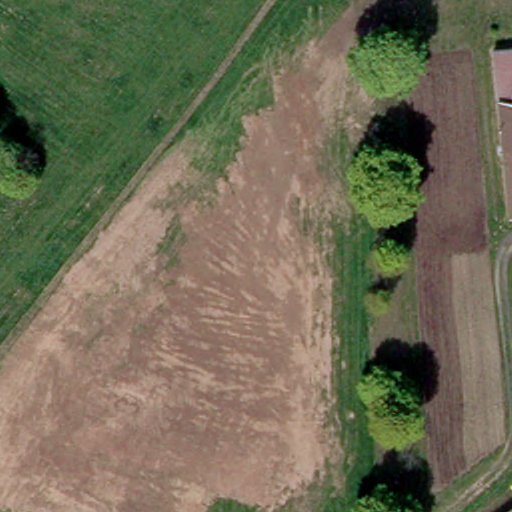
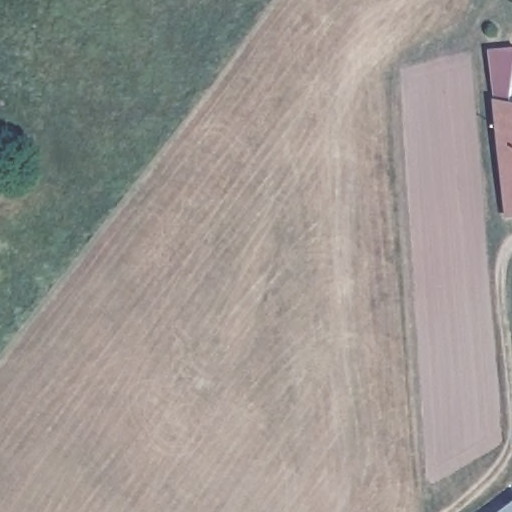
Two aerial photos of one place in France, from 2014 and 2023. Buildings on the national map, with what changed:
unchanged [(486,48),(512,45),(512,71),(507,101),(512,102),(512,151),(497,149),(486,48)]
unchanged [(500,167),(497,149),(512,151),(512,220),(505,221),(500,167)]
unchanged [(503,512),(512,505),(512,512),(503,512)]

